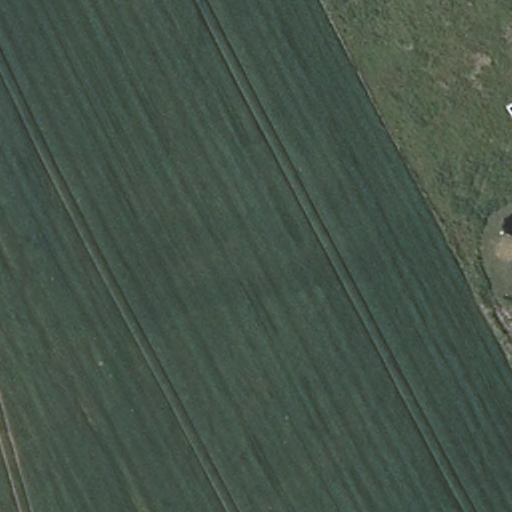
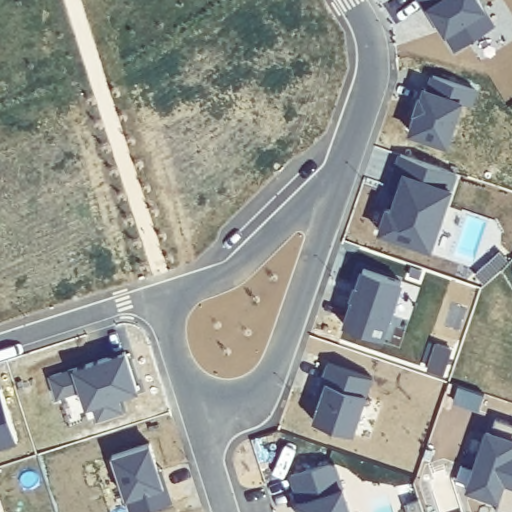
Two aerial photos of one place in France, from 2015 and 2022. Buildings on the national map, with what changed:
new [(426,13),(417,0),(477,0),(495,29),(455,54),(438,26),(434,28),(426,13)]
new [(414,114),(413,114),(418,99),(421,100),(426,85),(468,100),(463,115),(454,112),(444,146),(408,134),(414,114)]
new [(456,176),(431,257),(376,240),(386,212),(390,214),(401,177),(394,175),(399,157),(456,176)]
new [(353,302),(351,301),(356,287),(358,288),(364,272),(401,284),(381,340),(344,328),(353,302)]
new [(126,356),(137,395),(120,401),(125,414),(97,422),(93,411),(85,412),(79,397),(56,403),(48,378),(126,356)]
new [(317,399),(321,383),(328,365),(373,380),(353,437),(313,423),(321,400),(317,399)]
new [(18,443),(0,449),(0,392),(1,392),(18,443)]
new [(496,512),(498,507),(470,497),(496,421),(512,426),(512,512),(496,512)]
new [(156,475),(161,474),(171,505),(147,512),(129,512),(128,503),(124,505),(111,461),(149,450),(156,475)]
new [(335,469),(349,512),(299,512),(297,506),(299,505),(291,480),(329,468),(335,469)]
new [(423,512),(410,512),(408,505),(419,501),(423,512)]

